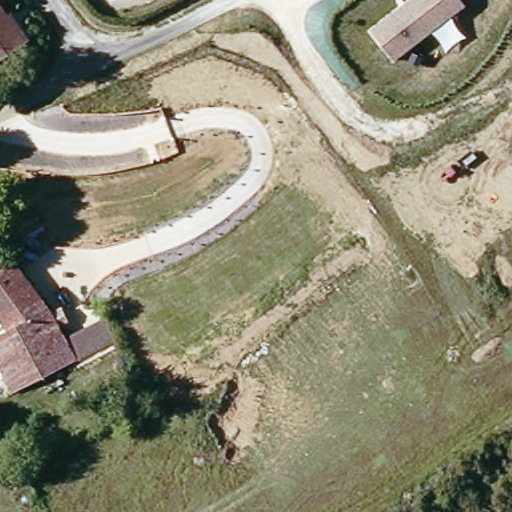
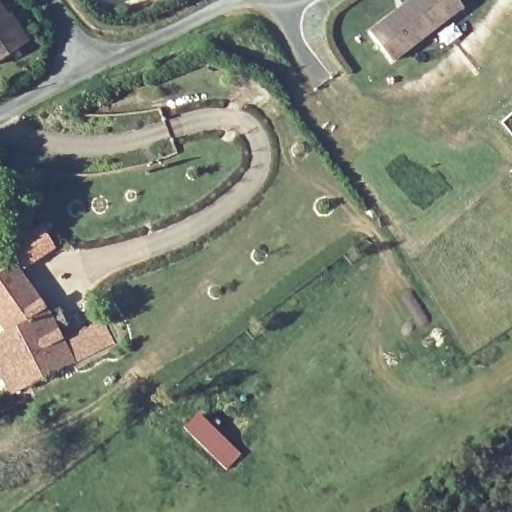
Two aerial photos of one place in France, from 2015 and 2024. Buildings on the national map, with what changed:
unchanged [(393,61),(370,31),(410,0),(462,0),(465,3),(393,61)]
unchanged [(0,60),(0,8),(24,43),(0,60)]
unchanged [(64,335),(100,317),(111,344),(7,390),(0,375),(0,335),(4,332),(0,326),(0,268),(10,261),(51,308),(64,335)]
new [(182,427),(197,412),(241,453),(226,469),(182,427)]

